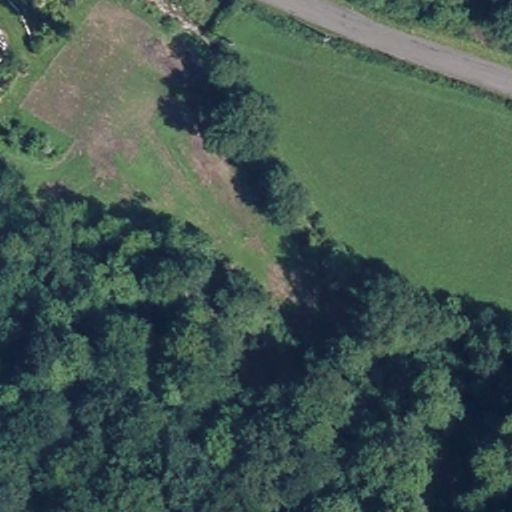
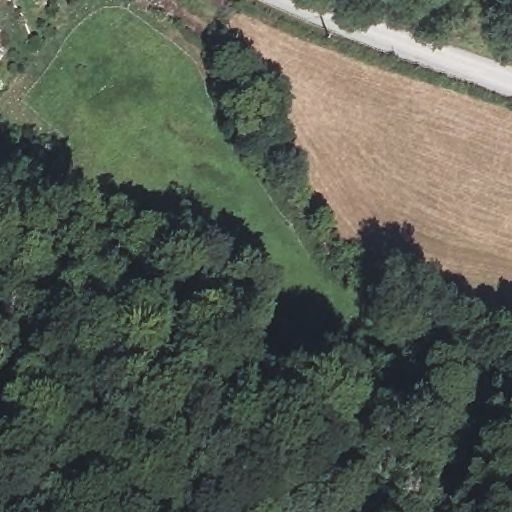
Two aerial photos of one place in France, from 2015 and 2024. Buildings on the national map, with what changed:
unchanged [(8,27),(0,42),(0,18),(8,27)]

